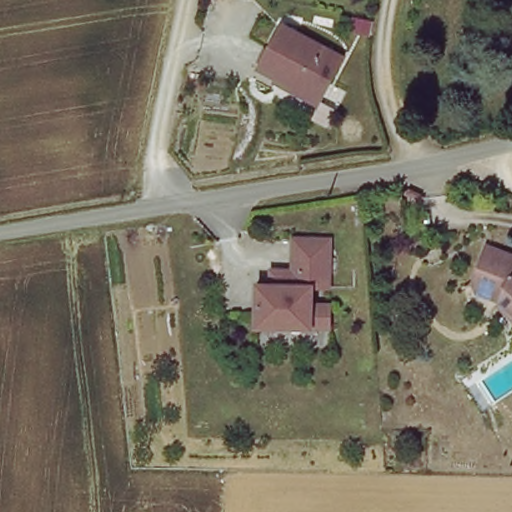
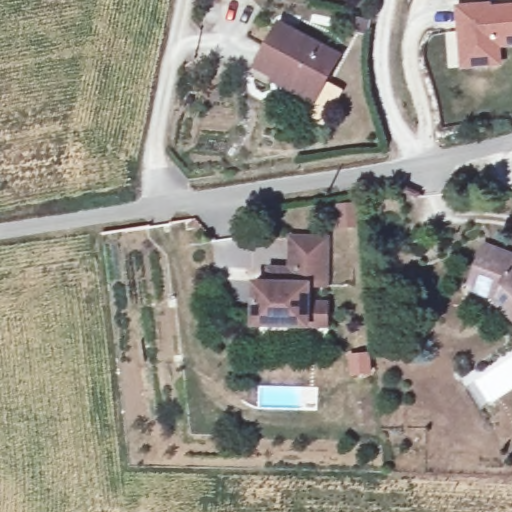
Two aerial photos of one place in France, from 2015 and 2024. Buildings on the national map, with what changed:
new [(493,2),(493,6),(512,5),(512,47),(499,48),(501,66),(463,69),(454,4),(493,2)]
unchanged [(259,72),(282,27),(343,55),(322,99),(259,72)]
unchanged [(337,331),(314,332),(264,329),(266,288),(281,288),(281,273),(303,274),(305,237),(333,238),(334,289),(315,289),(315,310),(336,310),(337,331)]
unchanged [(481,245),(511,256),(512,257),(512,311),(499,299),(476,293),(469,273),(481,245)]
unchanged [(512,315),(512,317),(511,316),(512,315)]

